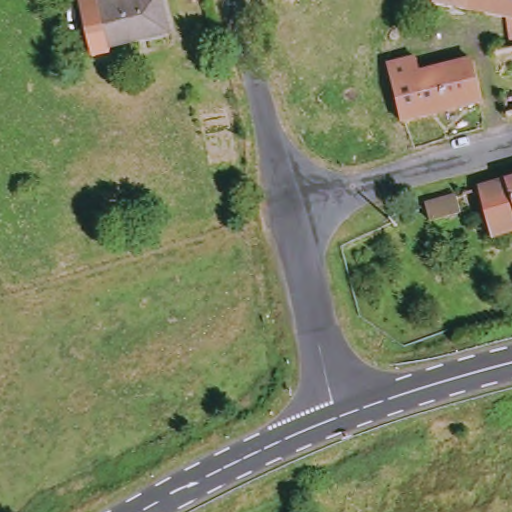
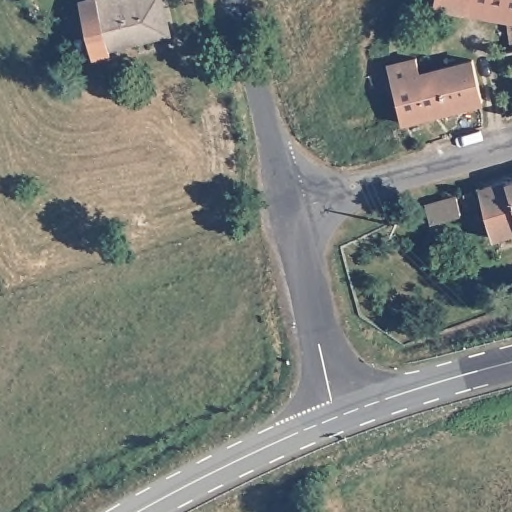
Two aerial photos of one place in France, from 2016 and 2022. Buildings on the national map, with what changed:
unchanged [(171,26),(112,41),(113,45),(96,49),(85,0),(102,0),(103,3),(113,0),(165,0),(171,26)]
unchanged [(443,0),(512,0),(512,17),(443,1),(443,0)]
unchanged [(422,56),(425,71),(478,58),(486,98),(403,114),(394,62),(422,56)]
unchanged [(512,233),(494,237),(481,189),(512,181),(512,233)]
unchanged [(456,196),(460,213),(430,222),(426,204),(456,196)]

